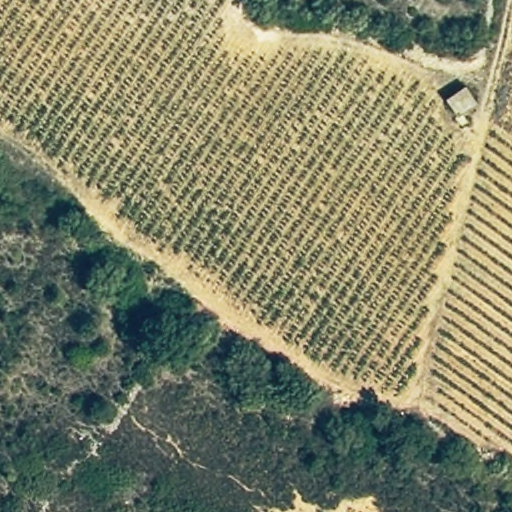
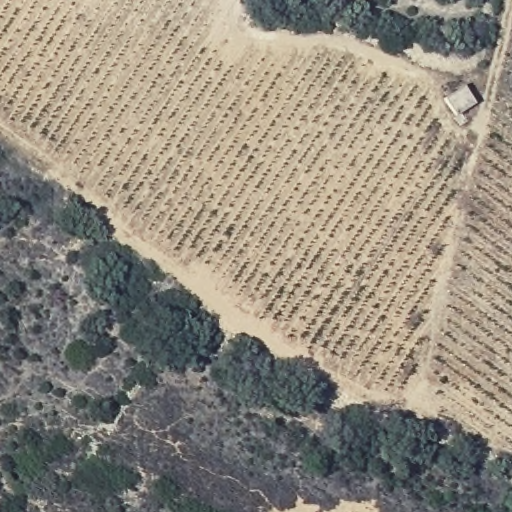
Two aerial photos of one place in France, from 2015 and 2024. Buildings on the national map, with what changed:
unchanged [(475,101),(452,110),(445,96),(468,83),(475,101)]

